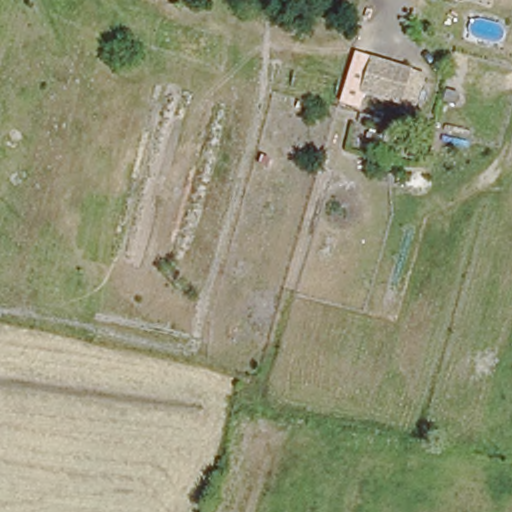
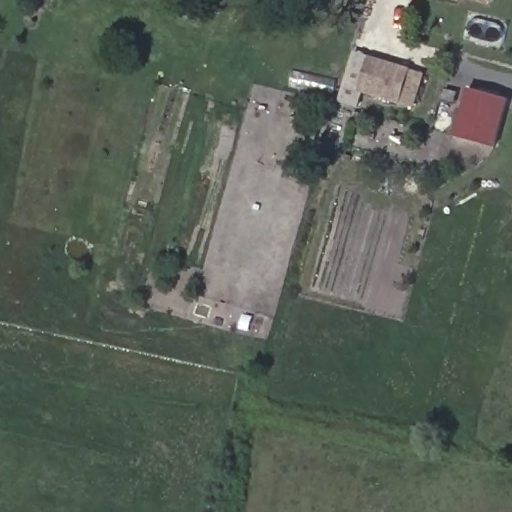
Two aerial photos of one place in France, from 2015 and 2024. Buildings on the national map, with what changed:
unchanged [(488,0),(490,0),(490,1),(488,0)]
unchanged [(413,106),(357,91),(367,56),(426,74),(413,106)]
new [(495,148),(455,136),(468,88),(508,100),(495,148)]

